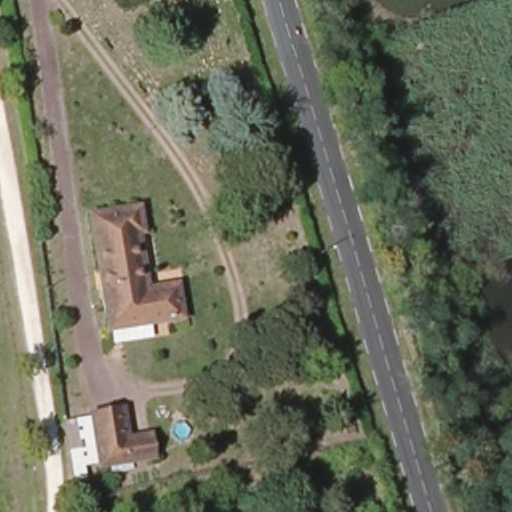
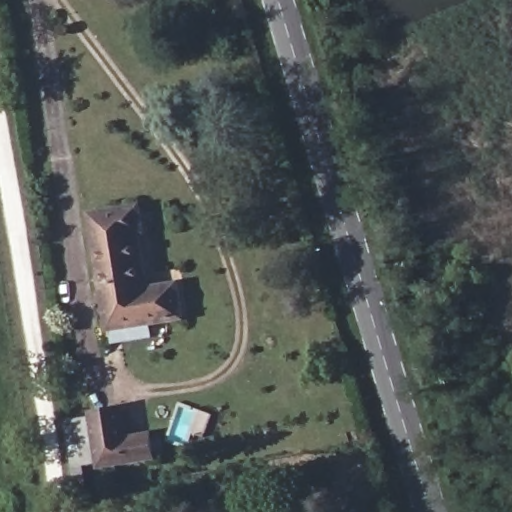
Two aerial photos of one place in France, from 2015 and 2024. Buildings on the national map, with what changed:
unchanged [(116,330),(93,220),(140,211),(144,233),(136,234),(149,293),(185,287),(190,318),(116,330)]
unchanged [(159,451),(135,455),(102,460),(93,411),(126,406),(131,435),(155,430),(159,451)]

